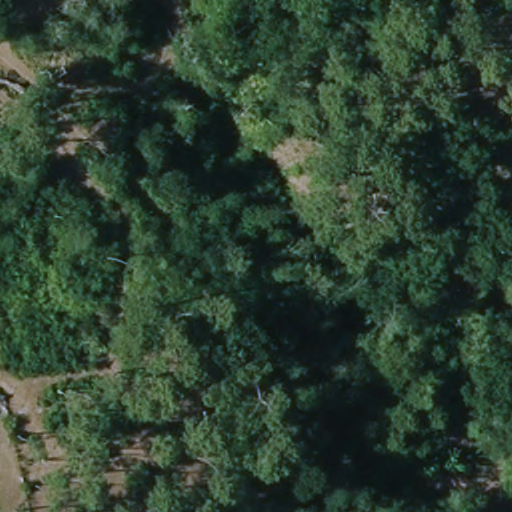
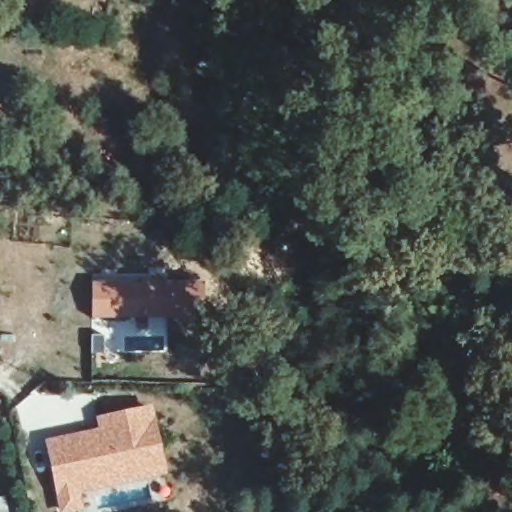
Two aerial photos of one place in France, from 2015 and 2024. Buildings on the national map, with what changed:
new [(91,277),(165,275),(166,280),(204,281),(203,317),(91,319),(91,277)]
new [(96,427),(95,416),(153,405),(169,475),(81,495),(85,512),(59,512),(44,438),(96,427)]
new [(10,512),(0,512),(0,497),(6,495),(10,512)]

